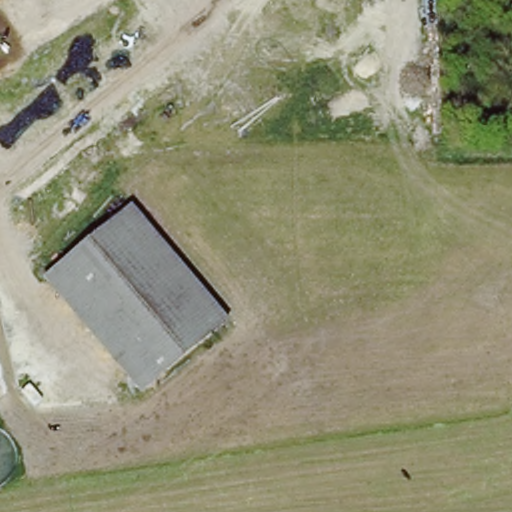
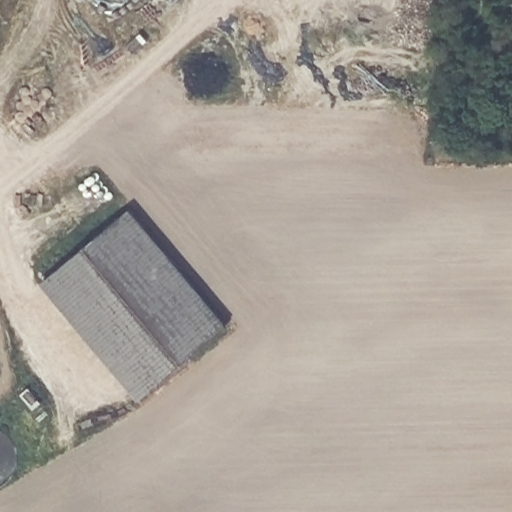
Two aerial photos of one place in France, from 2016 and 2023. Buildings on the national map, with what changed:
unchanged [(130,388),(64,304),(43,278),(132,210),(186,278),(226,329),(157,383),(138,397),(130,388)]

